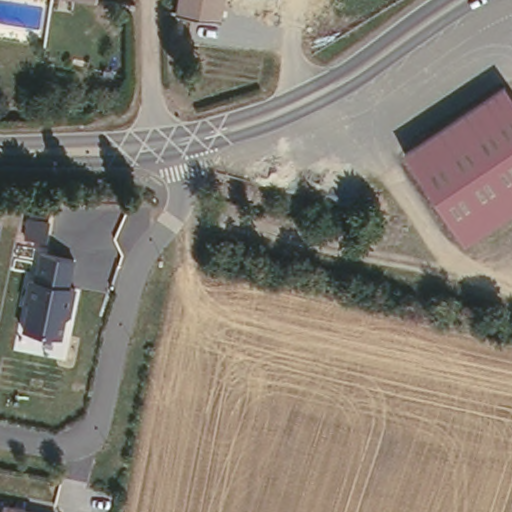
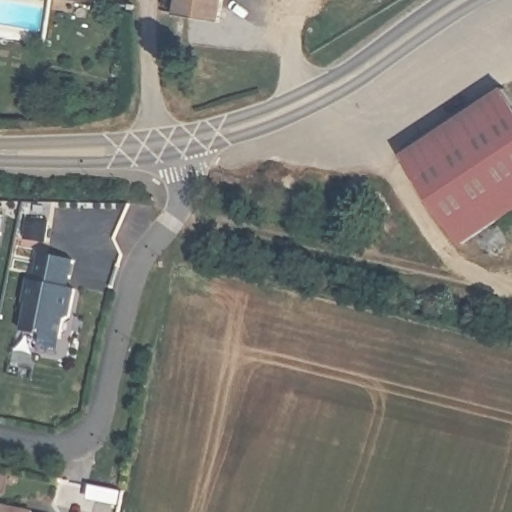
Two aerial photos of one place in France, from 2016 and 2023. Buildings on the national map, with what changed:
unchanged [(174,0),(222,0),(219,16),(172,10),(174,0)]
unchanged [(503,89),(512,103),(512,221),(465,251),(406,159),(503,89)]
unchanged [(76,261),(62,340),(24,333),(39,253),(76,261)]
unchanged [(37,511),(37,512),(5,512),(6,506),(37,511)]

